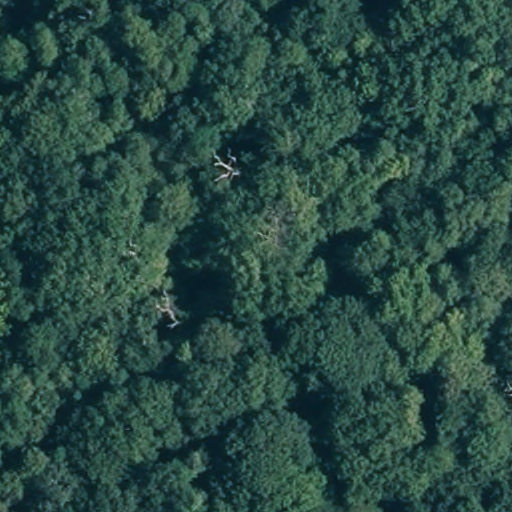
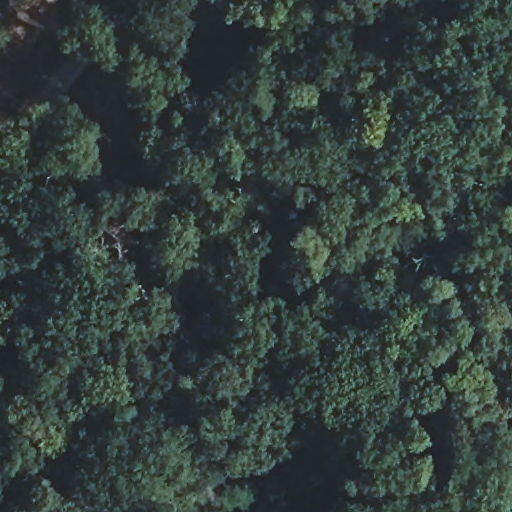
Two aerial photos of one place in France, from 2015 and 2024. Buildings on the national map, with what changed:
[]

